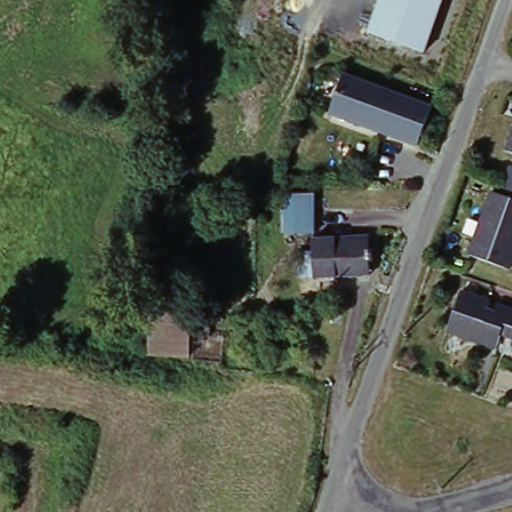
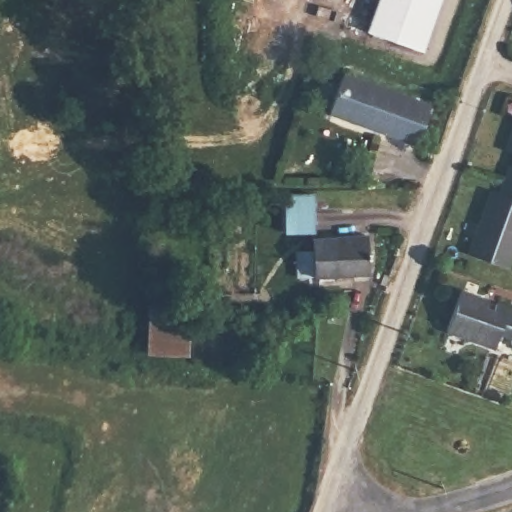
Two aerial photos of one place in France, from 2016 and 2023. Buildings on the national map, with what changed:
unchanged [(425,51),(367,30),(378,0),(443,0),(425,51)]
unchanged [(433,102),(418,148),(328,113),(348,71),(433,102)]
unchanged [(499,189),(507,191),(512,175),(512,264),(477,251),(499,189)]
unchanged [(317,196),(317,234),(288,235),(288,197),(317,196)]
unchanged [(299,254),(315,253),(315,240),(369,237),(372,276),(316,279),(300,280),(299,254)]
unchanged [(489,297),(486,304),(493,307),(496,300),(512,307),(512,336),(502,331),(495,345),(474,337),(448,326),(457,299),(462,288),(489,297)]
unchanged [(190,296),(187,355),(146,352),(148,294),(190,296)]
unchanged [(208,314),(208,334),(191,334),(191,314),(208,314)]

